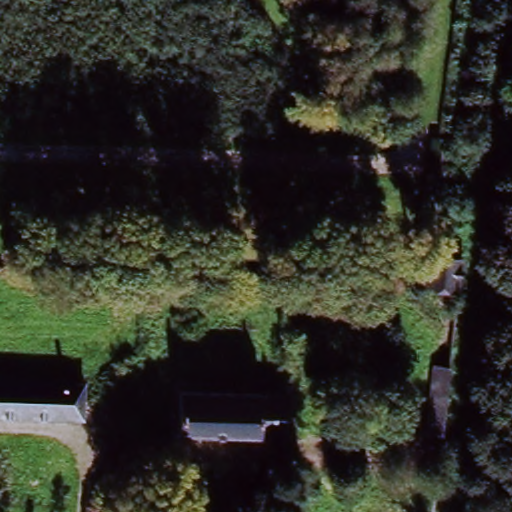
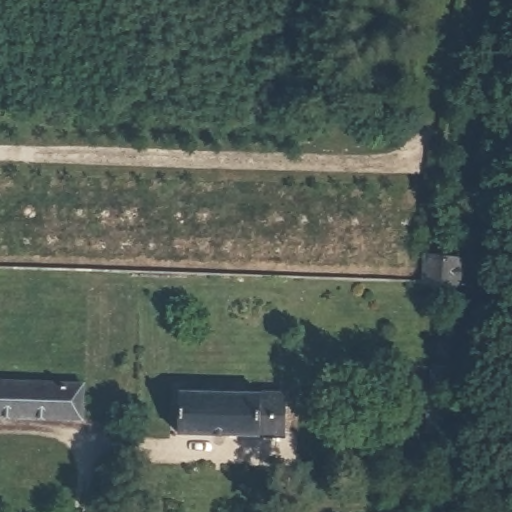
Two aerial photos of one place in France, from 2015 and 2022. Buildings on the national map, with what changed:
unchanged [(436,288),(440,254),(465,258),(459,292),(436,288)]
unchanged [(423,432),(430,362),(452,365),(447,437),(423,432)]
unchanged [(73,387),(72,423),(0,420),(0,384),(73,387)]
unchanged [(291,436),(171,433),(173,386),(265,384),(265,391),(292,390),(291,436)]

